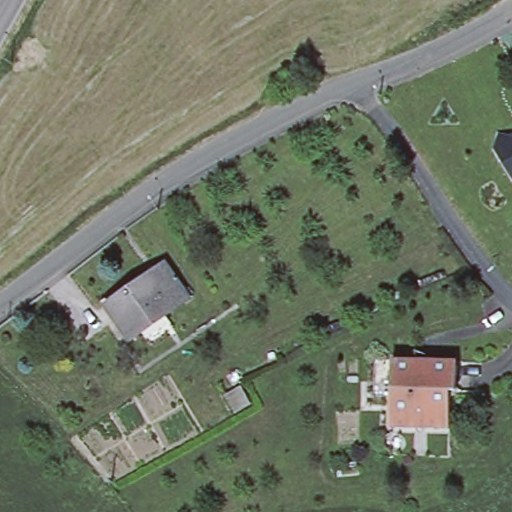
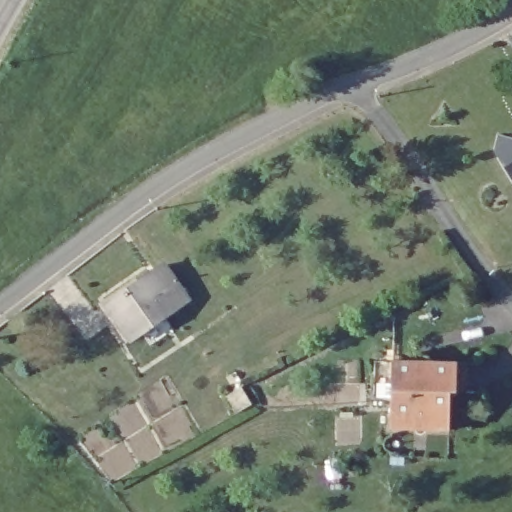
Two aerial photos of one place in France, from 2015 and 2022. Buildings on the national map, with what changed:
unchanged [(499,146),(502,135),(508,131),(512,129),(512,171),(499,146)]
unchanged [(189,298),(132,338),(107,305),(164,264),(189,298)]
unchanged [(457,394),(454,394),(452,431),(390,429),(391,399),(375,399),(377,362),(393,362),(458,365),(457,394)]

